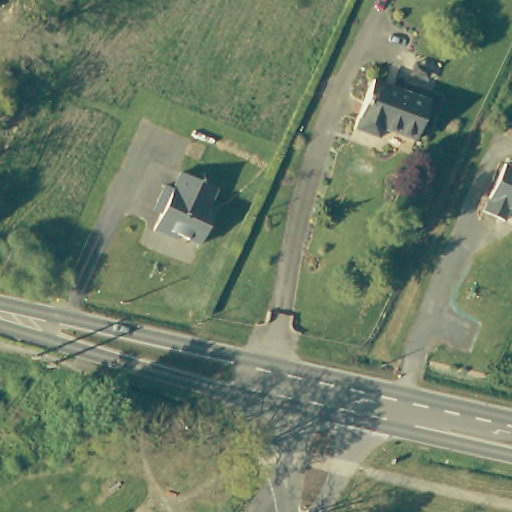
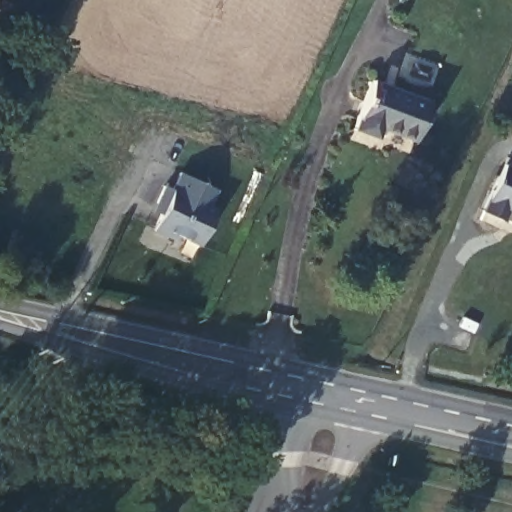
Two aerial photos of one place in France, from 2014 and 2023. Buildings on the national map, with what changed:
unchanged [(372,76),(429,97),(415,135),(384,124),(381,132),(355,123),(372,76)]
unchanged [(504,217),(500,215),(481,208),(503,163),(512,166),(512,205),(509,204),(504,216),(504,217)]
unchanged [(211,202),(218,205),(202,240),(181,230),(179,234),(157,224),(167,202),(160,198),(168,181),(175,184),(183,168),(219,184),(211,202)]

